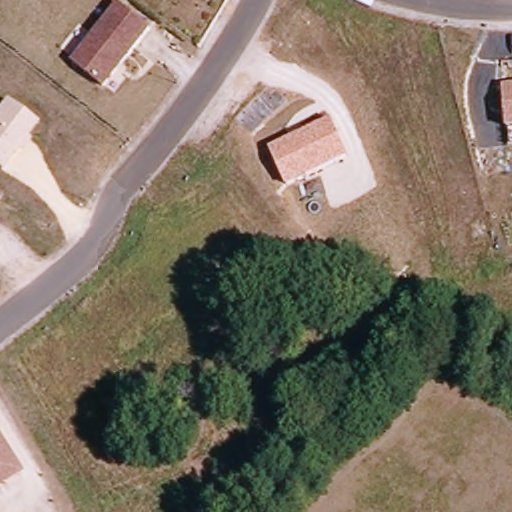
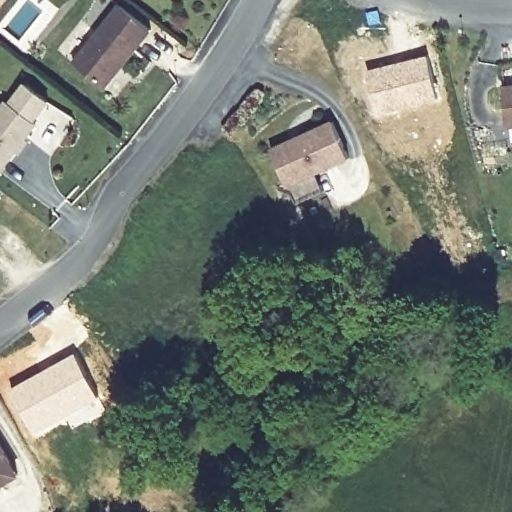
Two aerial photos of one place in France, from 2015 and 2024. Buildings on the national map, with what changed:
unchanged [(152,31),(105,90),(70,62),(118,3),(152,31)]
new [(429,53),(439,100),(375,116),(365,69),(429,53)]
unchanged [(508,128),(504,85),(512,85),(512,128),(508,128)]
unchanged [(0,109),(5,102),(36,125),(2,171),(0,170),(0,109)]
unchanged [(350,159),(287,187),(271,147),(332,119),(350,159)]
new [(74,351),(107,409),(72,428),(67,418),(33,437),(8,389),(74,351)]
unchanged [(0,489),(0,441),(21,476),(0,489)]

